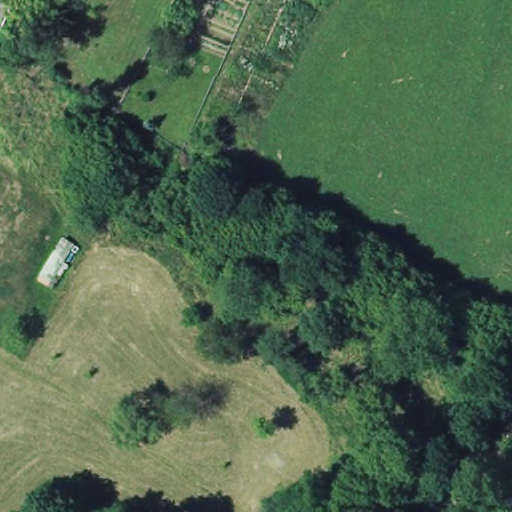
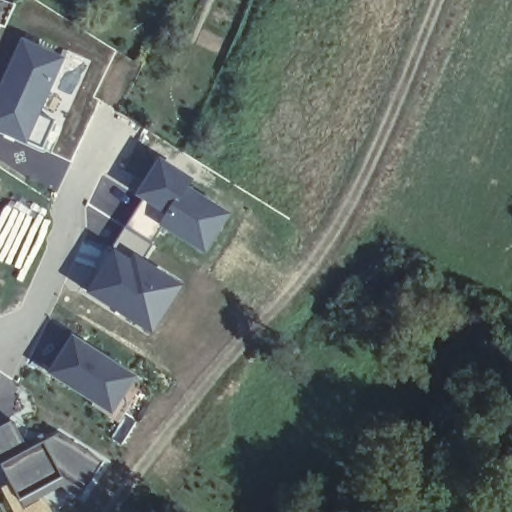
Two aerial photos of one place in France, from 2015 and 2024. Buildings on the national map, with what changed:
unchanged [(2,2),(5,0),(14,0),(21,2),(10,25),(7,36),(0,50),(0,1),(2,2)]
new [(20,37),(66,57),(42,112),(55,120),(42,150),(0,133),(0,83),(20,37)]
new [(150,339),(83,297),(107,255),(121,231),(148,246),(136,265),(177,290),(150,339)]
new [(133,375),(109,411),(45,372),(71,334),(133,375)]
new [(28,450),(58,435),(103,462),(85,492),(62,479),(20,500),(0,463),(0,429),(12,422),(28,450)]

